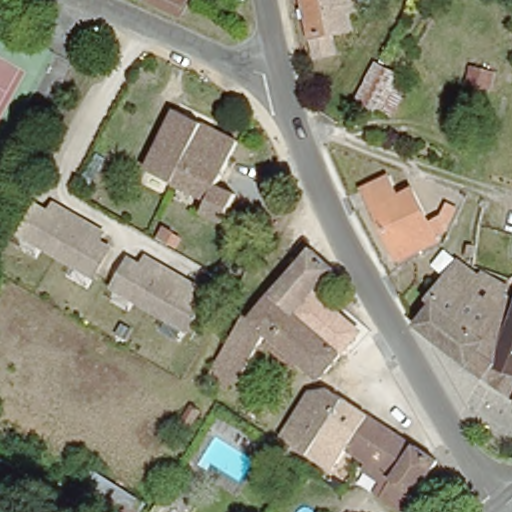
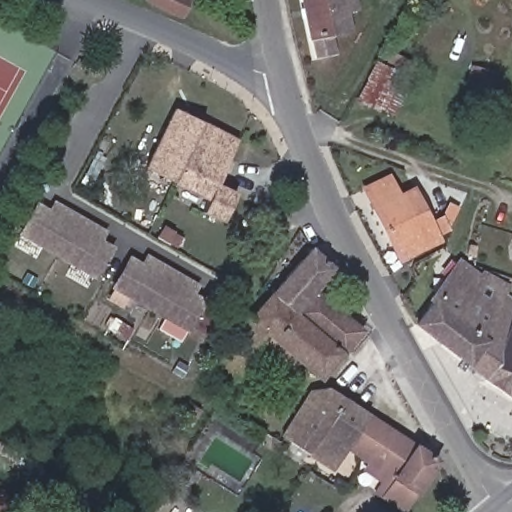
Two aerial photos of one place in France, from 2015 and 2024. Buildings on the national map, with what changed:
unchanged [(183,15),(152,2),(152,0),(188,0),(183,15)]
unchanged [(331,54),(312,57),(301,0),(350,0),(352,12),(343,13),(347,30),(327,34),(331,54)]
unchanged [(366,0),(377,0),(365,24),(356,19),(366,0)]
unchanged [(392,114),(358,99),(376,62),(410,78),(392,114)]
unchanged [(488,89),(465,82),(469,64),(495,70),(488,89)]
unchanged [(239,141),(228,159),(216,180),(237,191),(222,216),(202,205),(205,198),(141,164),(156,136),(172,106),(229,135),(239,141)]
unchanged [(392,245),(362,186),(387,174),(396,192),(407,186),(434,238),(412,249),(397,256),(392,245)]
unchanged [(39,210),(51,217),(56,207),(65,212),(96,229),(105,234),(100,243),(112,250),(97,279),(22,239),(39,210)]
unchanged [(330,268),(312,290),(353,328),(337,346),(274,291),(297,264),(282,253),(288,243),(304,254),(307,251),(330,268)]
unchanged [(479,274),(481,271),(505,284),(498,298),(512,303),(492,356),(479,370),(417,323),(429,303),(442,280),(455,260),(479,274)]
unchanged [(127,265),(140,272),(145,263),(154,268),(185,285),(194,289),(189,298),(202,305),(186,334),(112,294),(127,265)]
unchanged [(240,316),(250,322),(274,291),(337,346),(313,374),(264,330),(230,377),(207,365),(240,316)]
unchanged [(512,303),(512,366),(492,356),(512,303)]
unchanged [(280,436),(310,393),(326,387),(342,399),(306,453),(280,436)]
unchanged [(368,417),(387,430),(361,467),(345,457),(335,472),(306,453),(342,399),(368,417)]
unchanged [(399,512),(369,492),(377,479),(361,467),(387,430),(432,460),(399,512)]

